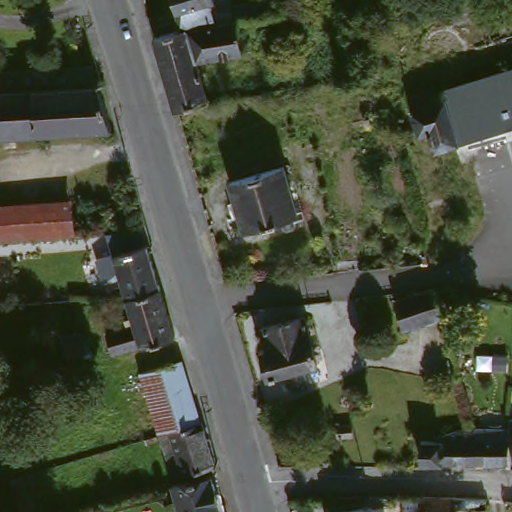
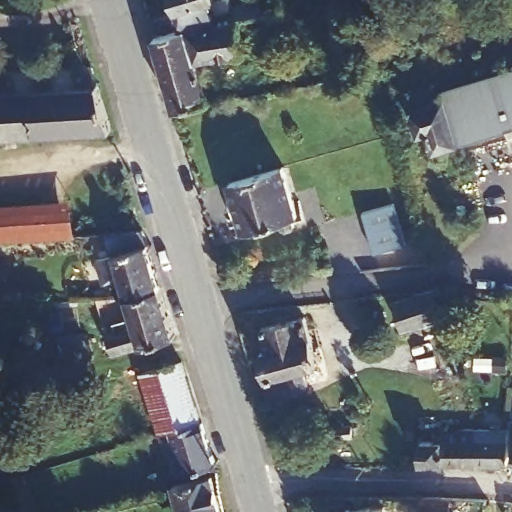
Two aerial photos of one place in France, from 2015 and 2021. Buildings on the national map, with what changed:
unchanged [(166,0),(210,0),(211,4),(225,1),(228,13),(257,10),(260,25),(247,27),(232,29),(224,31),(177,38),(166,0)]
unchanged [(315,47),(302,49),(295,19),(310,17),(315,47)]
unchanged [(224,31),(232,29),(237,61),(192,69),(202,107),(172,119),(150,46),(177,38),(224,31)]
unchanged [(0,72),(91,66),(95,77),(95,81),(97,85),(100,88),(112,130),(0,137),(0,72)]
unchanged [(413,139),(401,100),(421,94),(424,103),(437,99),(435,94),(512,71),(512,131),(430,156),(423,136),(413,139)]
unchanged [(282,167),(296,221),(242,237),(223,180),(282,167)]
new [(363,211),(395,202),(408,242),(376,250),(363,211)]
unchanged [(69,240),(0,246),(0,208),(65,203),(69,240)]
unchanged [(121,356),(108,359),(107,353),(104,342),(131,333),(130,330),(122,302),(102,237),(137,234),(155,294),(164,318),(170,341),(121,356)]
unchanged [(430,289),(445,318),(399,332),(389,304),(430,289)]
unchanged [(263,376),(257,350),(262,348),(257,328),(300,317),(312,363),(298,368),(302,384),(287,388),(282,372),(263,376)]
unchanged [(72,355),(66,333),(87,332),(94,355),(72,355)]
unchanged [(195,426),(192,427),(153,438),(150,426),(135,378),(158,371),(177,364),(195,426)]
unchanged [(471,462),(417,462),(416,442),(437,440),(437,433),(470,428),(471,462)]
unchanged [(501,428),(505,429),(501,462),(471,462),(470,428),(501,428)]
unchanged [(197,429),(210,471),(168,482),(155,441),(197,429)]
unchanged [(509,464),(512,434),(512,464),(509,464)]
unchanged [(11,480),(14,479),(22,477),(28,496),(17,500),(11,480)]
unchanged [(213,512),(172,512),(167,491),(207,484),(213,512)]
unchanged [(412,512),(412,497),(442,497),(442,512),(412,512)]
unchanged [(362,503),(362,504),(372,502),(374,512),(330,512),(330,508),(362,503)]
unchanged [(512,510),(512,512),(506,512),(506,509),(512,510)]

